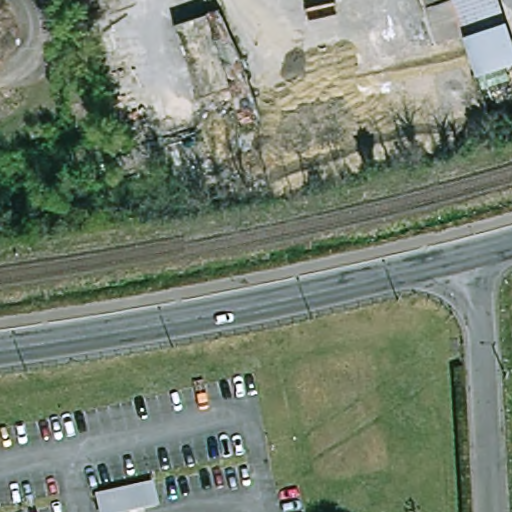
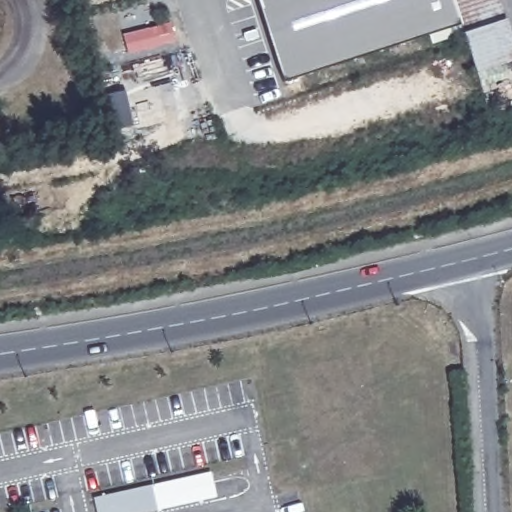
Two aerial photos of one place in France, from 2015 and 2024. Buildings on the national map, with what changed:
new [(284,80),(257,0),(425,0),(435,31),(284,80)]
unchanged [(425,0),(453,0),(465,34),(439,42),(425,0)]
unchanged [(468,33),(457,0),(489,0),(497,23),(468,33)]
unchanged [(510,63),(482,73),(468,33),(497,23),(510,63)]
demolished [(241,125),(238,114),(230,89),(223,65),(240,60),(256,110),(259,119),(241,125)]
unchanged [(217,496),(147,512),(97,512),(94,497),(212,471),(217,496)]

